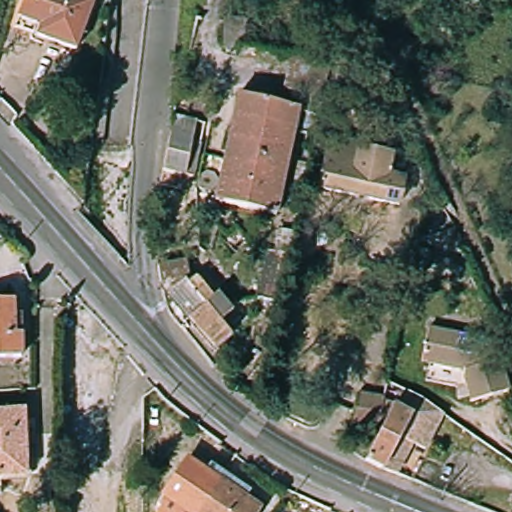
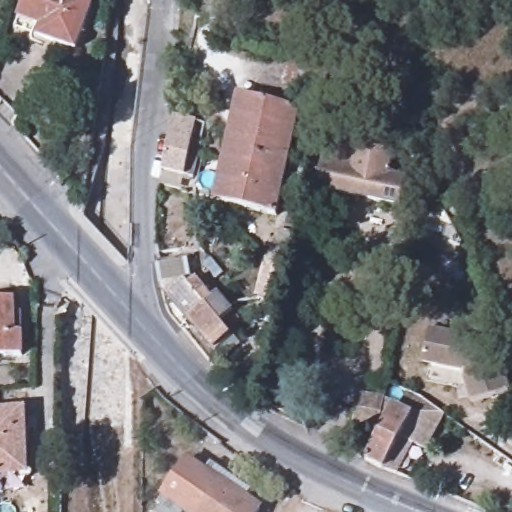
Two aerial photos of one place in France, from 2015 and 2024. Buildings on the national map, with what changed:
unchanged [(73,51),(33,42),(36,29),(14,24),(18,0),(75,0),(83,2),(73,51)]
unchanged [(239,23),(231,56),(210,51),(214,22),(232,22),(239,23)]
unchanged [(301,96),(257,89),(261,52),(264,53),(307,60),(301,96)]
unchanged [(216,206),(236,96),(286,104),(284,108),(298,111),(295,129),(282,126),(268,215),(216,206)]
unchanged [(157,173),(167,121),(193,125),(181,177),(157,173)]
unchanged [(322,151),(390,160),(387,182),(403,185),(397,215),(312,197),(322,151)]
unchanged [(1,225),(0,226),(0,224),(1,225)]
unchanged [(262,288),(263,272),(267,240),(283,243),(276,274),(273,291),(262,288)]
unchanged [(207,296),(212,290),(231,307),(219,322),(233,335),(217,353),(167,303),(163,296),(160,282),(170,273),(184,286),(189,280),(207,296)]
unchanged [(7,300),(9,334),(16,333),(17,356),(0,358),(0,300),(7,300)]
unchanged [(505,388),(465,401),(456,371),(417,362),(425,325),(490,340),(505,388)]
unchanged [(355,461),(361,435),(344,431),(352,398),(370,402),(375,380),(397,390),(432,411),(410,454),(392,445),(377,471),(357,462),(355,461)]
unchanged [(17,408),(24,470),(0,473),(0,410),(17,408)]
unchanged [(161,505),(165,500),(159,496),(187,456),(224,481),(220,485),(201,512),(170,512),(161,505)]
unchanged [(224,481),(260,506),(256,512),(201,512),(220,485),(224,481)]

